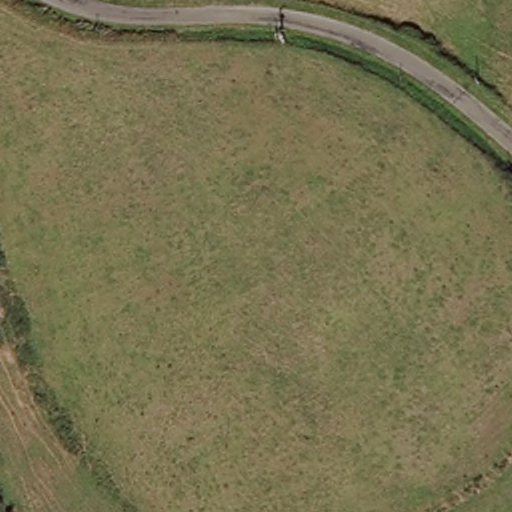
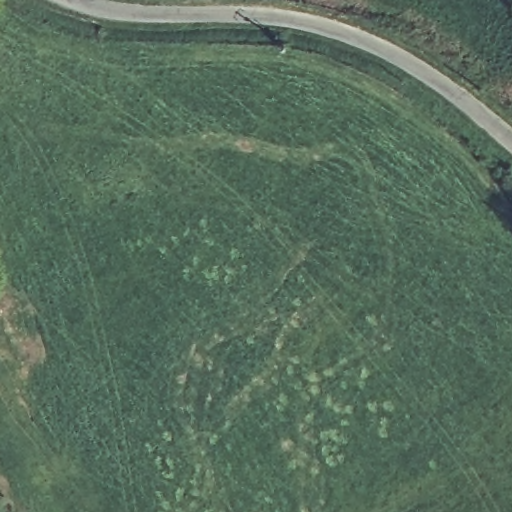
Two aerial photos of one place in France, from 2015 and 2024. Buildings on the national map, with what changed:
[]

